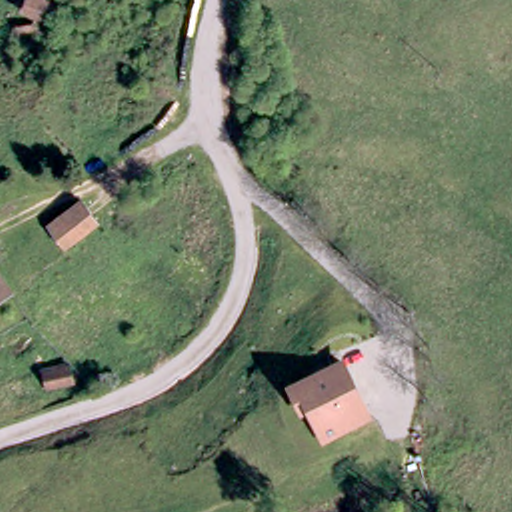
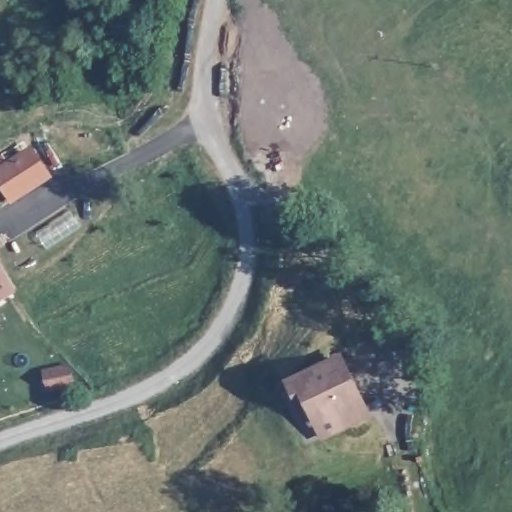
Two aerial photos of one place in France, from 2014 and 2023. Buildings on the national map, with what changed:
unchanged [(55,1),(48,20),(22,10),(25,0),(53,0),(55,1)]
new [(0,167),(33,145),(53,176),(10,204),(0,187),(0,167)]
unchanged [(0,293),(0,278),(8,288),(0,293)]
unchanged [(343,362),(370,419),(327,440),(310,404),(304,407),(294,385),(343,362)]
unchanged [(64,371),(63,390),(36,390),(35,370),(64,371)]

